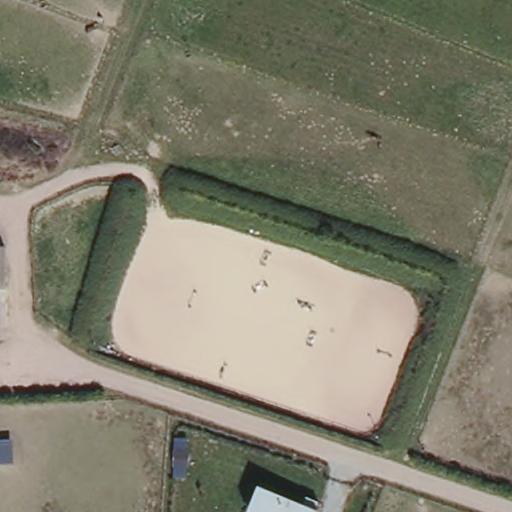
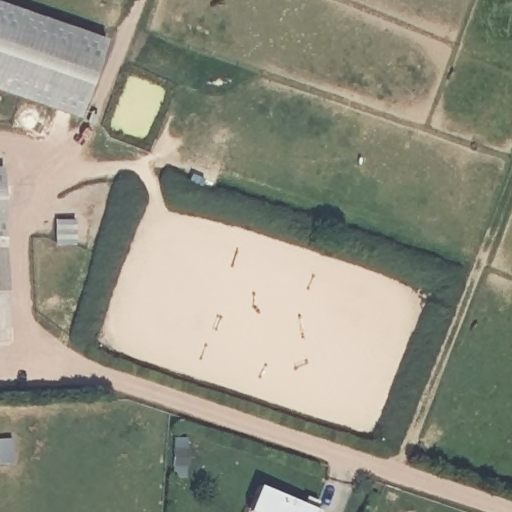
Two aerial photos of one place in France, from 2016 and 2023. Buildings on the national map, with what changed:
new [(75,123),(0,97),(0,10),(104,44),(75,123)]
unchanged [(2,172),(5,248),(9,338),(0,339),(0,173),(2,172)]
unchanged [(320,511),(319,512),(255,512),(248,509),(255,484),(320,511)]

